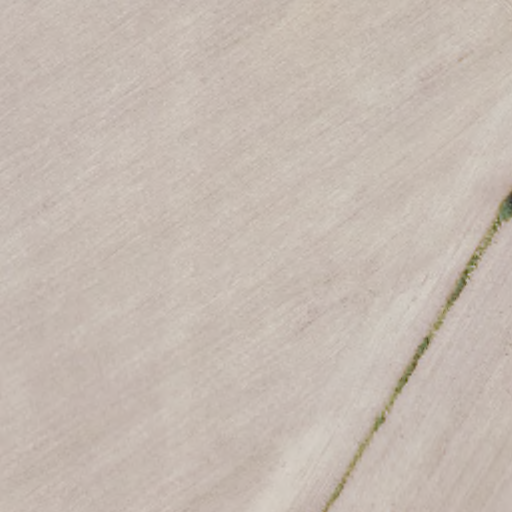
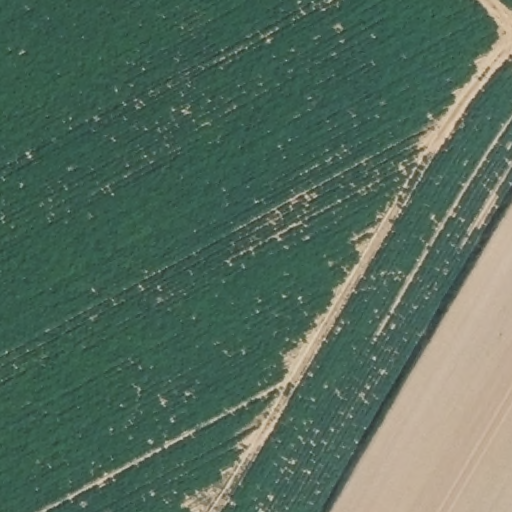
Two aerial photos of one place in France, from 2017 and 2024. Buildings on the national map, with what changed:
[]

